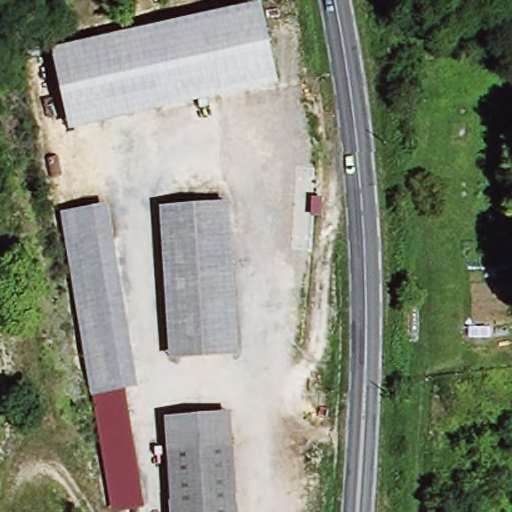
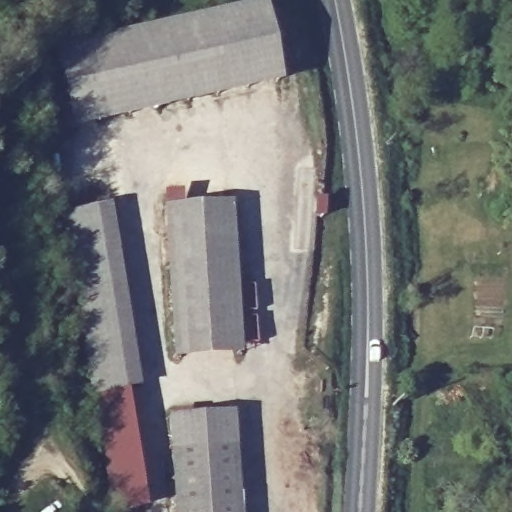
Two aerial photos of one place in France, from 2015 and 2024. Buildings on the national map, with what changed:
unchanged [(52,50),(260,2),(279,86),(70,132),(52,50)]
unchanged [(166,206),(232,202),(239,353),(175,357),(166,206)]
unchanged [(111,203),(141,387),(127,391),(146,508),(126,512),(113,512),(61,211),(111,203)]
unchanged [(232,416),(238,512),(173,512),(166,421),(232,416)]

